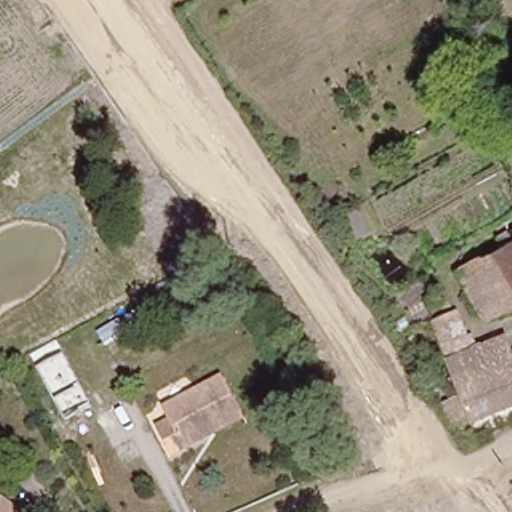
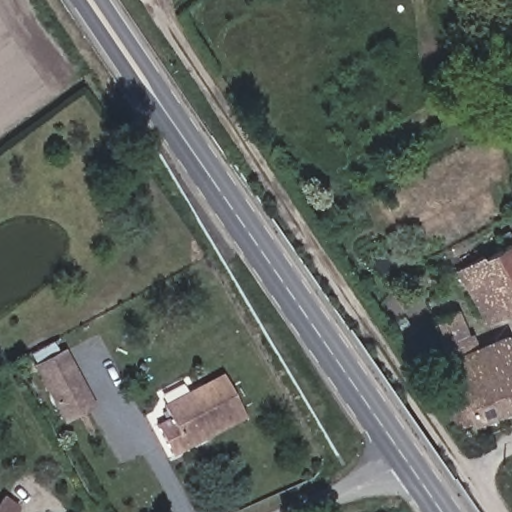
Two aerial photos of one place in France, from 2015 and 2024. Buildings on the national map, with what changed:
unchanged [(454,273),(501,248),(512,241),(512,305),(481,322),(454,273)]
unchanged [(467,334),(472,347),(501,336),(512,362),(512,403),(468,421),(442,357),(428,322),(437,318),(452,313),(462,337),(467,334)]
new [(64,424),(33,366),(65,350),(96,407),(64,424)]
unchanged [(152,426),(166,419),(159,407),(216,376),(238,418),(209,433),(181,448),(167,455),(152,426)]
unchanged [(14,508),(11,512),(0,512),(0,501),(2,499),(14,508)]

